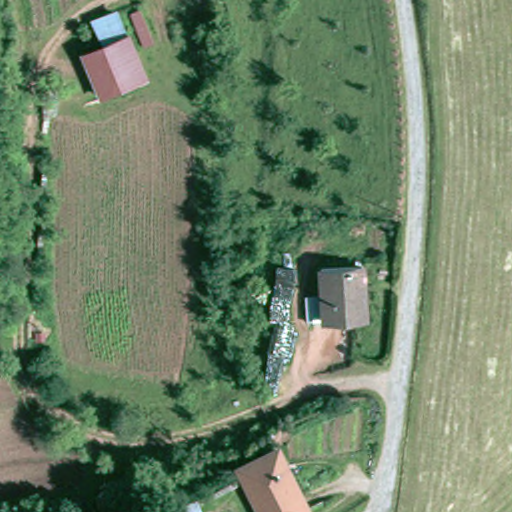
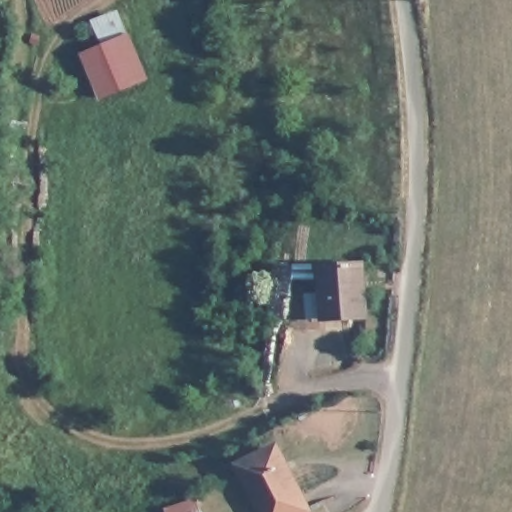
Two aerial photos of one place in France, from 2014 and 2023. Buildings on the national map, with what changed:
unchanged [(99,85),(87,59),(96,54),(87,32),(113,21),(124,42),(119,46),(130,72),(99,85)]
unchanged [(366,320),(324,323),(322,267),(365,266),(366,320)]
unchanged [(307,512),(264,512),(243,468),(276,450),(307,512)]

